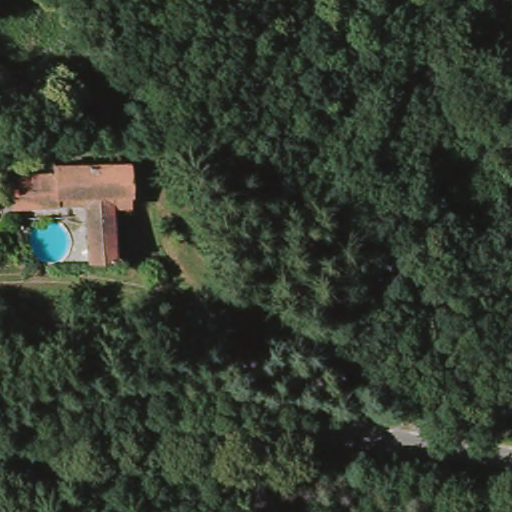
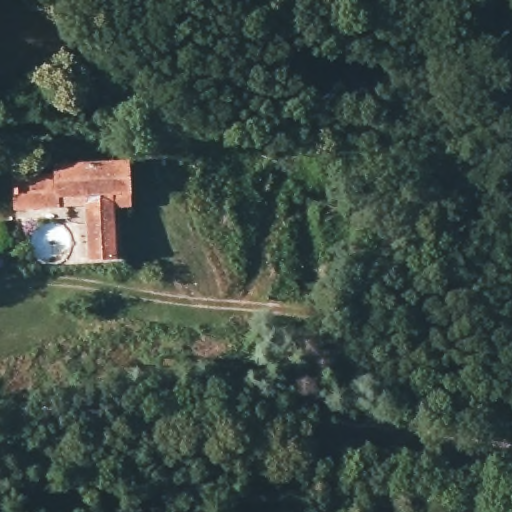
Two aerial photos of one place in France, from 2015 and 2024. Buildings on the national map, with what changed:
unchanged [(154,192),(132,192),(136,268),(110,268),(106,195),(77,195),(78,211),(38,212),(37,174),(77,173),(76,158),(151,156),(154,192)]

